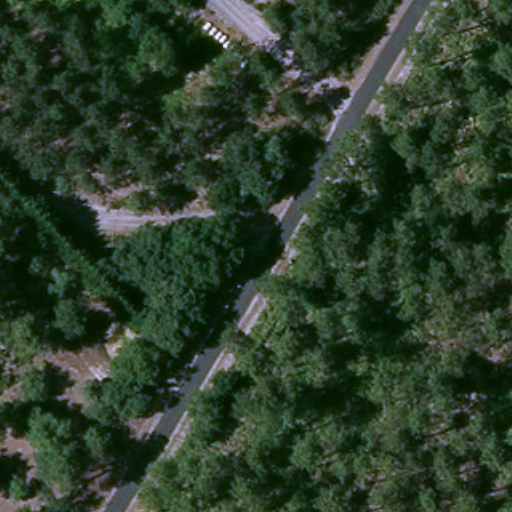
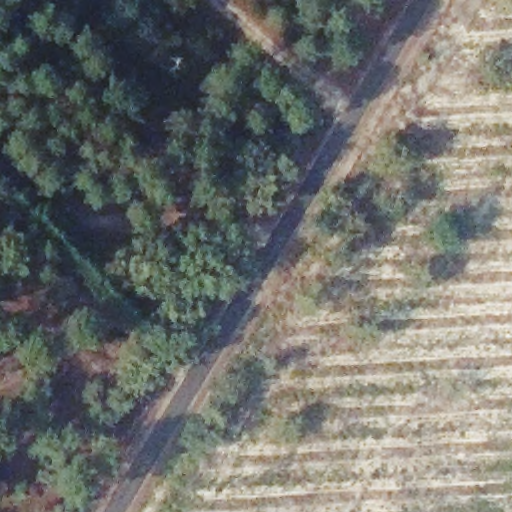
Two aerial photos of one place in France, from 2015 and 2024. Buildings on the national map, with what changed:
[]

